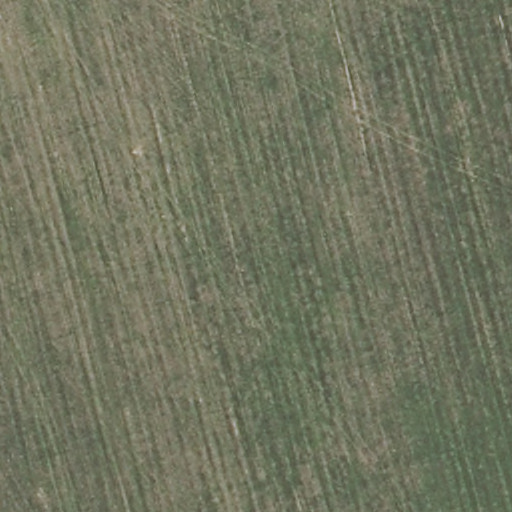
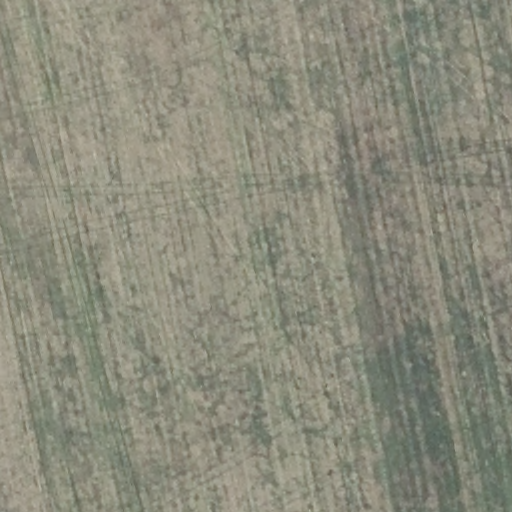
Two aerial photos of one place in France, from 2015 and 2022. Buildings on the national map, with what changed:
[]

